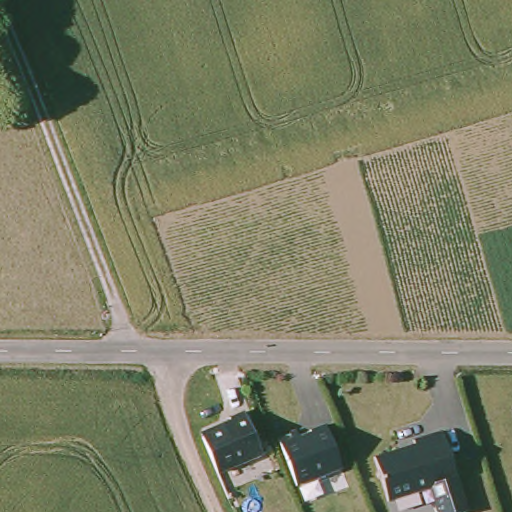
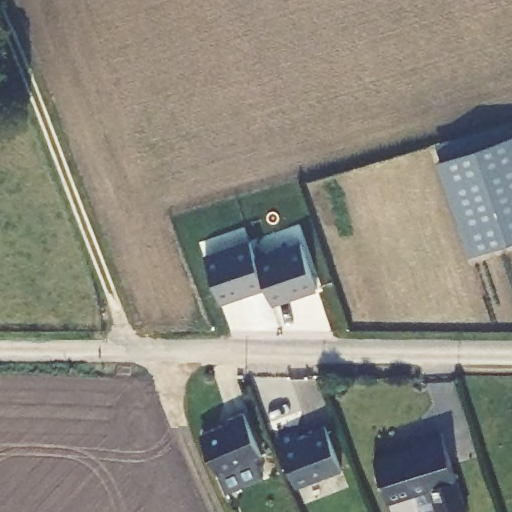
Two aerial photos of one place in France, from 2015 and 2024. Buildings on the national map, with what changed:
new [(512,240),(474,253),(441,158),(512,133),(512,240)]
new [(264,289),(221,303),(204,253),(250,239),(256,256),(302,241),(319,288),(274,304),(264,289)]
unchanged [(225,422),(241,415),(259,459),(214,478),(214,479),(205,458),(198,442),(199,441),(201,437),(200,436),(226,425),(225,422)]
unchanged [(294,435),(296,441),(308,436),(307,434),(323,428),(339,472),(294,490),(275,442),(294,435)]
unchanged [(374,463),(414,450),(412,443),(413,442),(414,444),(440,436),(439,434),(441,434),(465,512),(436,512),(429,490),(387,504),(388,506),(387,506),(373,461),(374,461),(374,463)]

